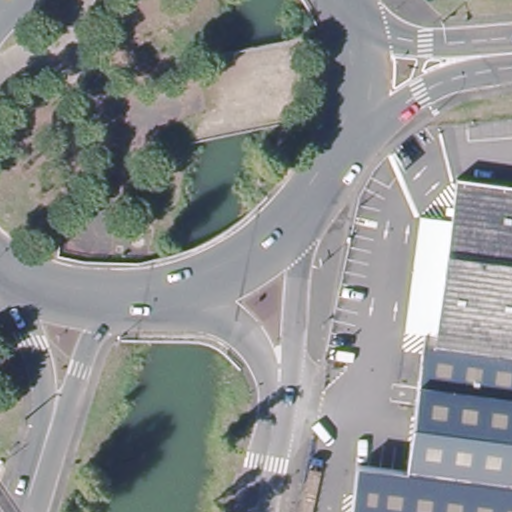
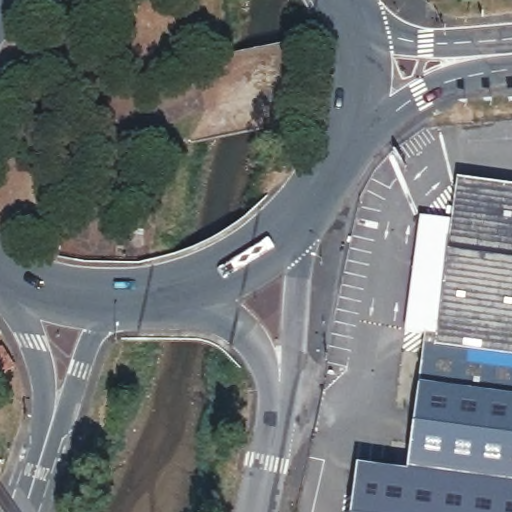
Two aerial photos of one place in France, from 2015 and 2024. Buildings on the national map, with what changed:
unchanged [(453,224),(456,208),(460,182),(475,185),(512,190),(512,343),(439,332),(438,339),(411,335),(426,220),(453,224)]
unchanged [(512,512),(354,512),(360,465),(408,471),(422,368),(434,370),(438,339),(439,332),(512,343),(512,512)]
unchanged [(0,388),(0,371),(7,383),(0,388)]

